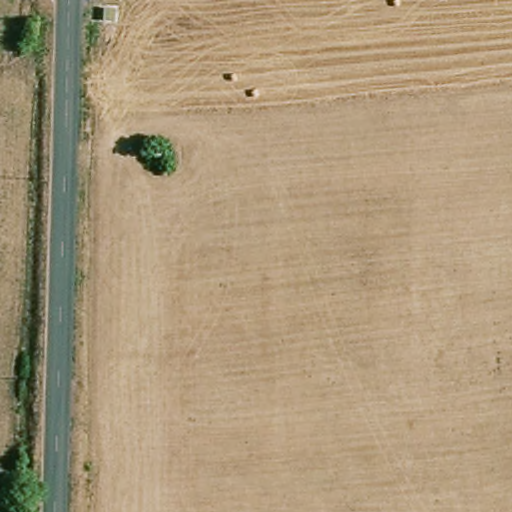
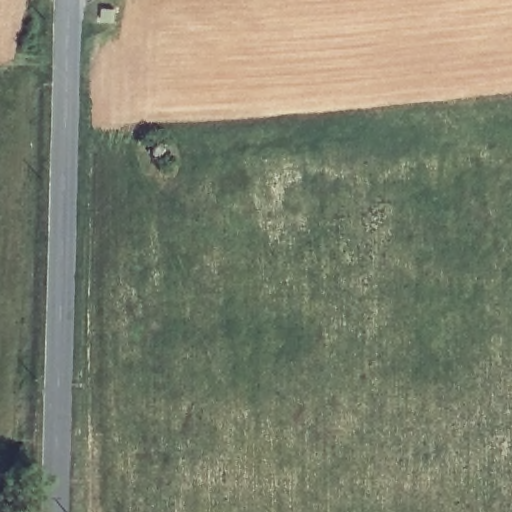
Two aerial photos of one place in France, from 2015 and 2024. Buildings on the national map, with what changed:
[]

